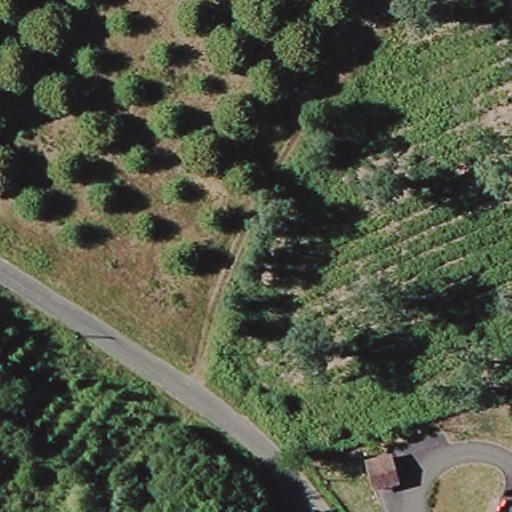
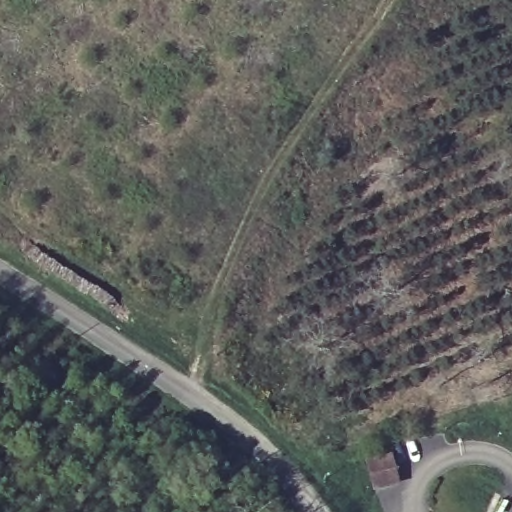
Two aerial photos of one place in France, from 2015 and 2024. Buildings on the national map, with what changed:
unchanged [(399,482),(373,492),(365,463),(390,455),(399,482)]

